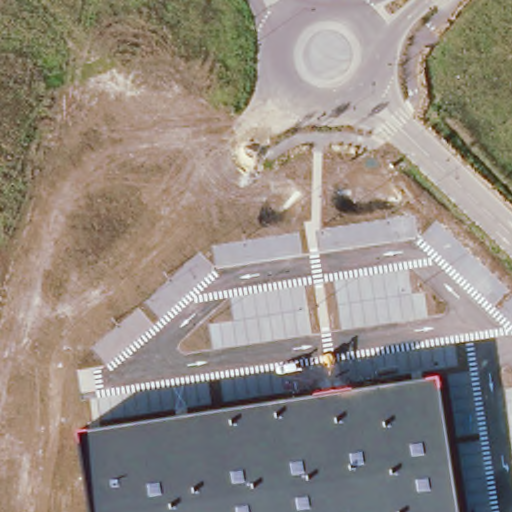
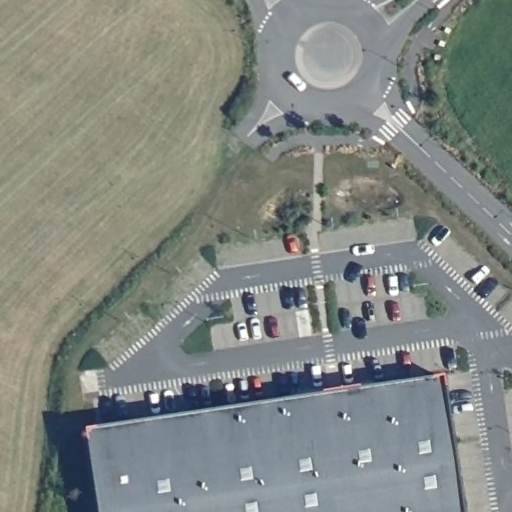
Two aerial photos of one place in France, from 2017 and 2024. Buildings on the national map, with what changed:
unchanged [(459,512),(91,512),(80,432),(439,377),(459,512)]

